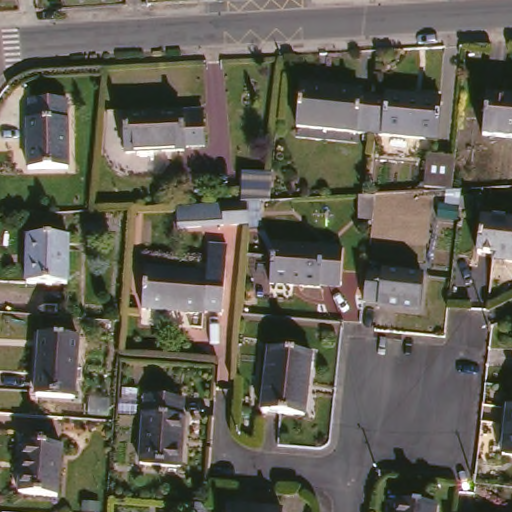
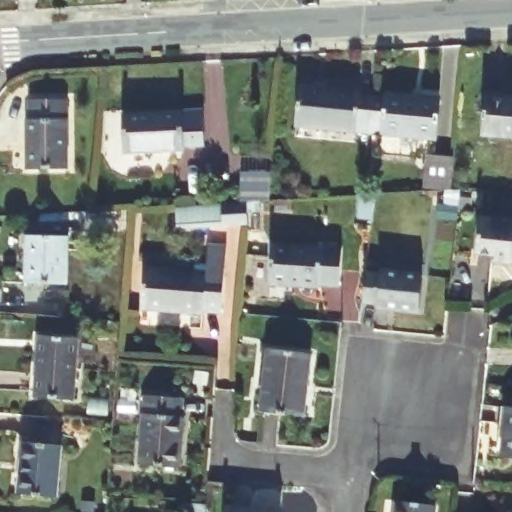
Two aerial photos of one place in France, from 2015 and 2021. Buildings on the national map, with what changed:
unchanged [(291,127),(296,85),(355,91),(354,96),(367,97),(363,134),(291,127)]
unchanged [(363,134),(367,97),(380,98),(380,93),(435,99),(430,141),(363,134)]
unchanged [(486,95),(512,98),(512,138),(482,135),(486,95)]
unchanged [(23,169),(22,121),(25,121),(25,99),(61,99),(63,168),(23,169)]
unchanged [(183,153),(124,155),(122,113),(187,110),(202,109),(204,147),(184,148),(183,153)]
unchanged [(423,187),(427,157),(453,159),(450,190),(423,187)]
unchanged [(239,198),(241,168),(271,171),(268,201),(239,198)]
unchanged [(250,207),(248,227),(223,225),(225,205),(250,207)]
unchanged [(482,255),(467,253),(471,217),(512,222),(512,265),(482,262),(482,255)]
unchanged [(22,287),(23,241),(63,242),(62,288),(22,287)]
unchanged [(219,274),(216,312),(199,311),(198,314),(137,310),(140,268),(201,272),(203,244),(221,246),(219,274)]
unchanged [(315,286),(315,289),(265,285),(268,244),(336,249),(334,287),(315,286)]
unchanged [(372,307),(372,304),(358,303),(361,273),(375,274),(375,272),(416,276),(413,311),(372,307)]
unchanged [(34,397),(40,336),(78,340),(73,400),(34,397)]
unchanged [(256,412),(264,349),(306,354),(298,417),(256,412)]
unchanged [(129,464),(135,396),(172,400),(170,419),(174,419),(169,468),(129,464)]
unchanged [(498,408),(512,409),(512,459),(493,457),(498,408)]
unchanged [(14,498),(18,447),(56,450),(52,501),(14,498)]
unchanged [(281,511),(281,512),(226,512),(226,507),(281,511)]
unchanged [(430,511),(430,512),(391,512),(392,507),(430,511)]

